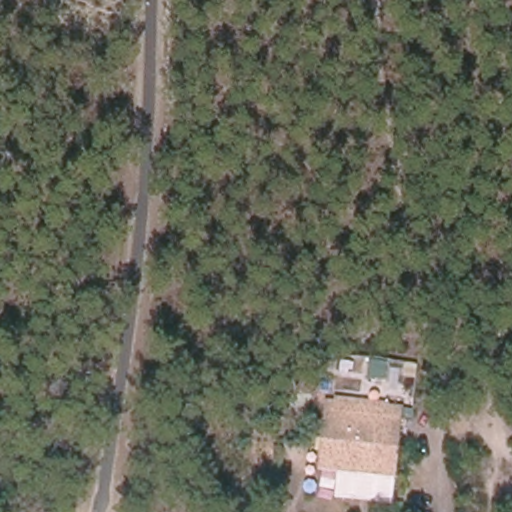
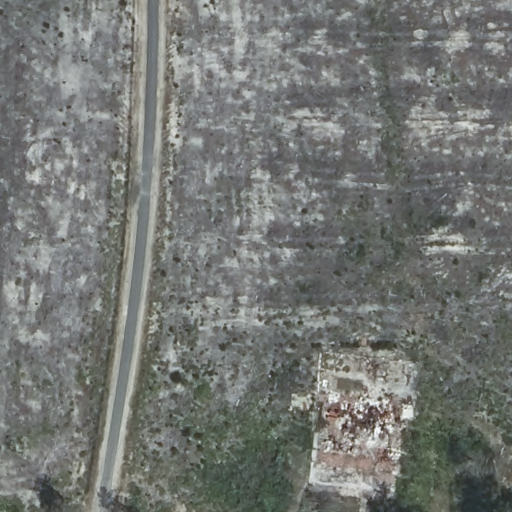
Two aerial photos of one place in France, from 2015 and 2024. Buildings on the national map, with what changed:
demolished [(326,395),(402,405),(394,478),(339,469),(317,466),(326,395)]
demolished [(394,478),(391,504),(334,500),(339,469),(394,478)]

